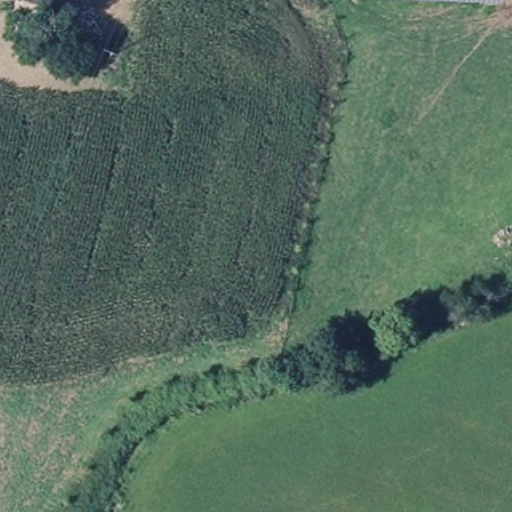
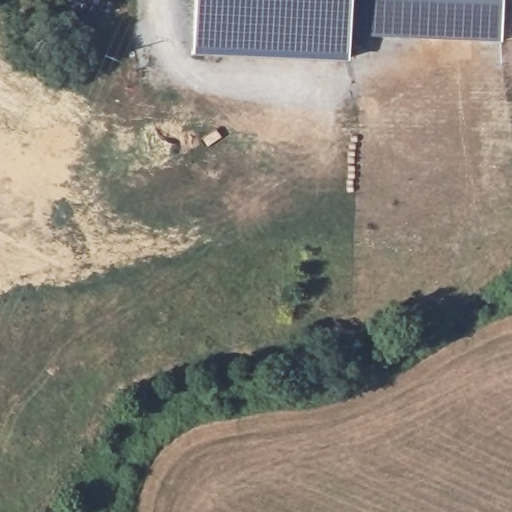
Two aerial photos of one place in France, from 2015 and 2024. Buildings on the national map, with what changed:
new [(502,40),(349,33),(348,60),(192,53),(195,0),(384,0),(502,7),(502,40)]
new [(502,7),(384,0),(504,0),(502,7)]

